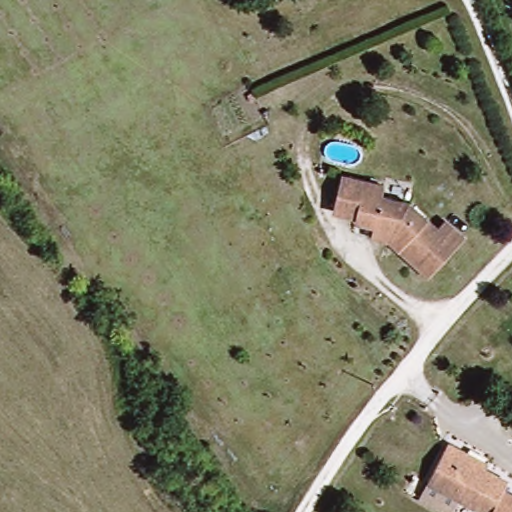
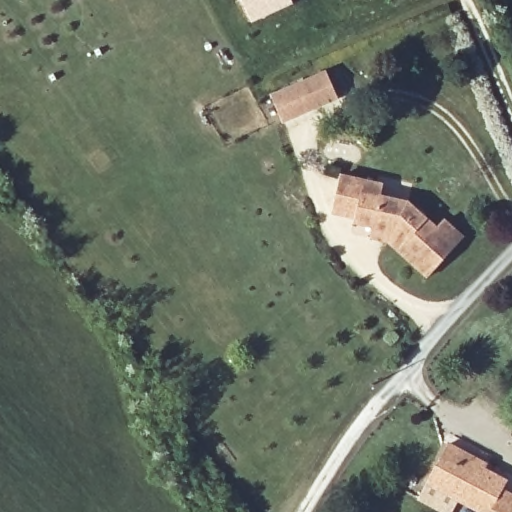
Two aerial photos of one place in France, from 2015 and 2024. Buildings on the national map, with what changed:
new [(328,70),(340,101),(284,125),(272,94),(328,70)]
unchanged [(372,238),(375,226),(358,222),(361,212),(333,207),(343,171),(379,179),(379,189),(411,197),(442,224),(449,217),(469,234),(432,274),(410,254),(398,244),(372,238)]
unchanged [(454,512),(437,512),(418,500),(453,443),(471,453),(488,463),(483,472),(506,487),(502,496),(512,503),(512,512),(474,512),(460,503),(454,512)]

